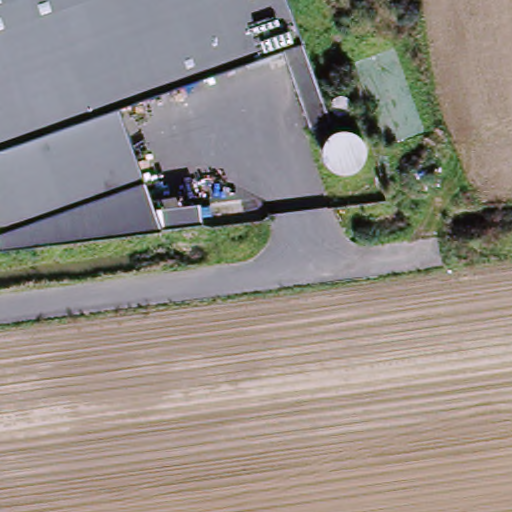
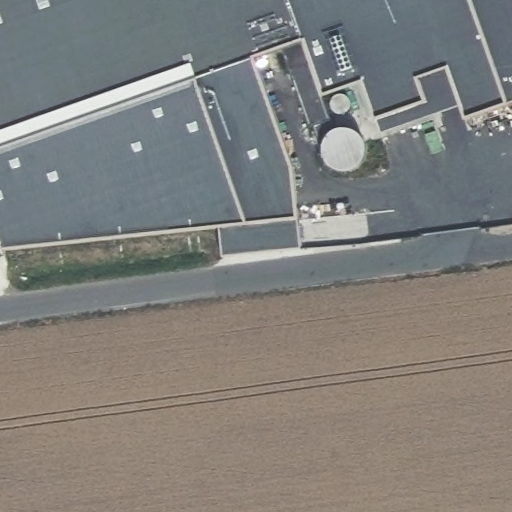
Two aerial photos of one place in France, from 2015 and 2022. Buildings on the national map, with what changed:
unchanged [(293,0),(307,41),(125,108),(150,180),(3,231),(0,221),(0,0),(293,0)]
new [(466,119),(460,105),(380,134),(374,120),(360,82),(324,95),(331,121),(308,129),(281,51),(304,43),(307,41),(293,0),(512,0),(512,102),(507,103),(466,119)]
new [(291,166),(297,217),(302,246),(222,255),(219,227),(203,229),(201,223),(199,204),(154,211),(143,182),(150,180),(125,108),(253,61),(291,166)]
new [(352,101),(353,105),(353,110),(352,113),(350,115),(346,116),(342,116),(339,115),(336,111),(335,108),(335,104),(337,101),(340,99),(343,98),(347,98),(350,99),(352,101)]
unchanged [(3,231),(143,182),(154,211),(199,204),(201,223),(0,249),(0,221),(3,231)]

